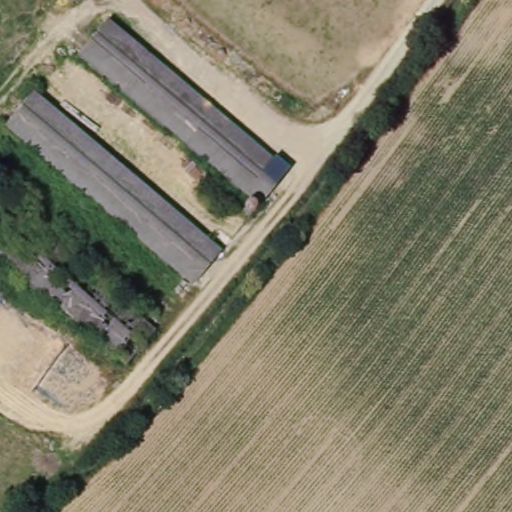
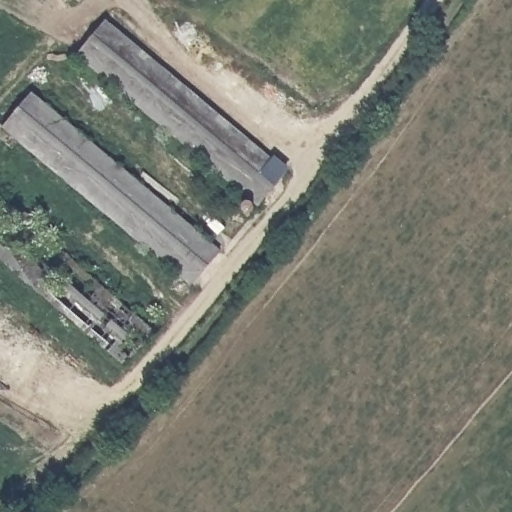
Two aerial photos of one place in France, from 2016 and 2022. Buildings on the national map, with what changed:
unchanged [(111,19),(122,30),(128,25),(274,165),(268,170),(281,184),(249,218),(78,53),(111,19)]
unchanged [(216,262),(185,295),(22,139),(14,149),(0,135),(0,122),(2,120),(7,125),(39,92),(216,262)]
unchanged [(58,253),(142,336),(135,343),(148,355),(117,386),(0,270),(0,196),(58,253)]

